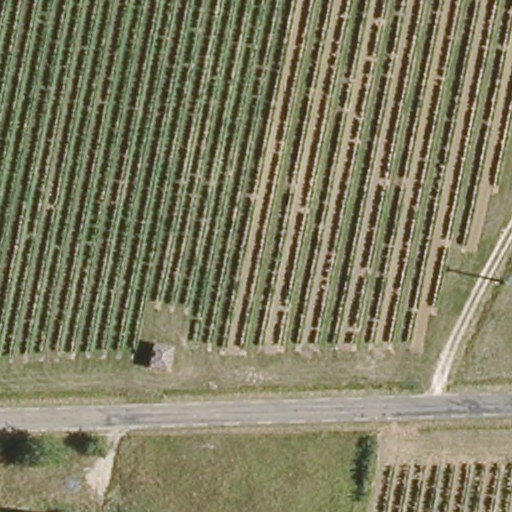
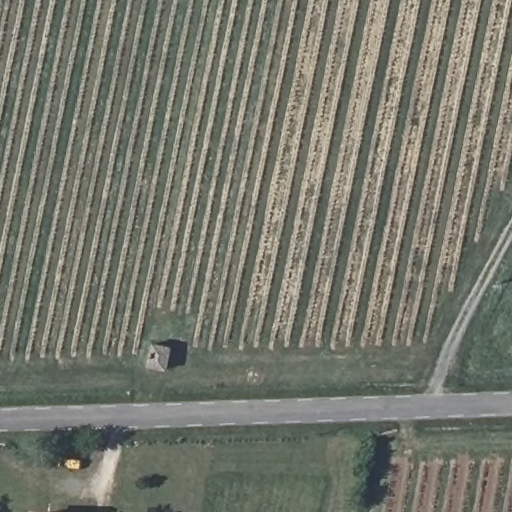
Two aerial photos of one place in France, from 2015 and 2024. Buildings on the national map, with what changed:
unchanged [(150,343),(169,344),(168,367),(150,366),(150,343)]

